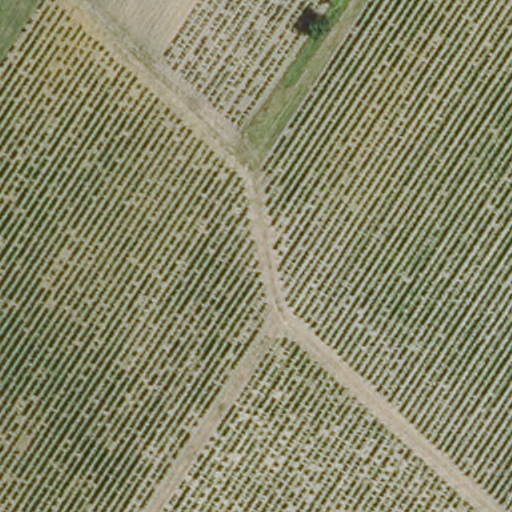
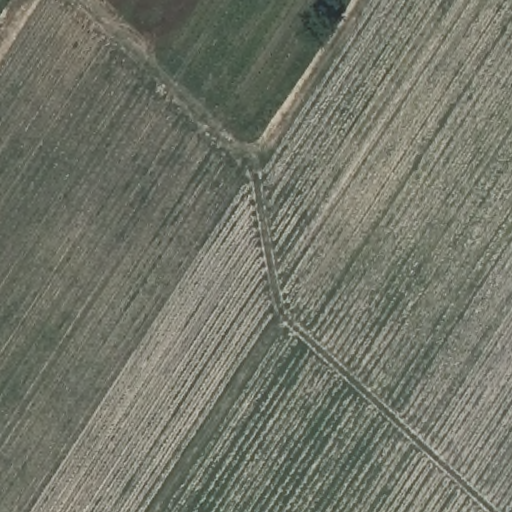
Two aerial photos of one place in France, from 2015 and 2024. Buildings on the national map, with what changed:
[]

